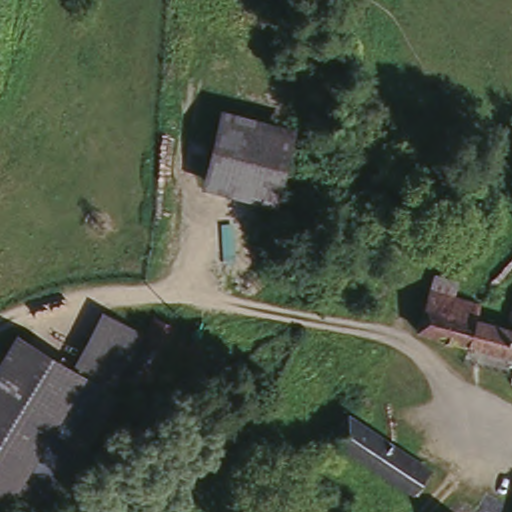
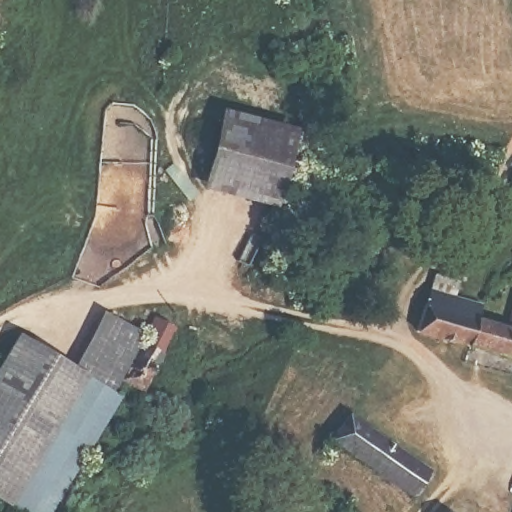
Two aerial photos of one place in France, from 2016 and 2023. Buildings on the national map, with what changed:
unchanged [(295,128),(277,209),(202,190),(221,109),(295,128)]
unchanged [(451,284),(447,300),(479,310),(474,320),(500,330),(512,296),(512,362),(414,330),(424,292),(428,277),(451,284)]
unchanged [(106,310),(143,328),(133,355),(130,364),(139,369),(117,403),(70,371),(106,310)]
unchanged [(147,317),(170,330),(153,355),(176,365),(167,383),(130,364),(147,317)]
unchanged [(117,403),(41,512),(8,512),(0,507),(0,363),(18,337),(117,403)]
unchanged [(434,478),(415,500),(327,446),(342,420),(345,422),(434,478)]

